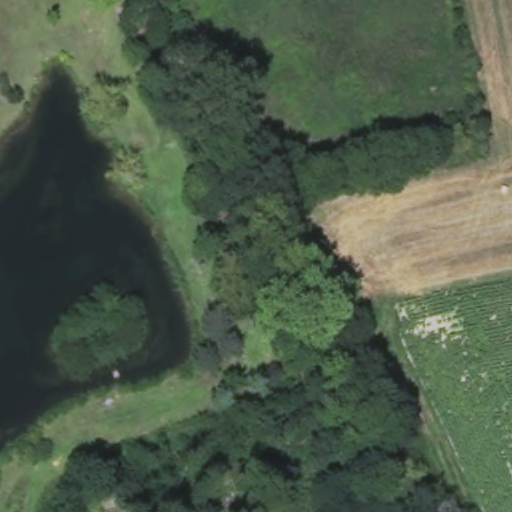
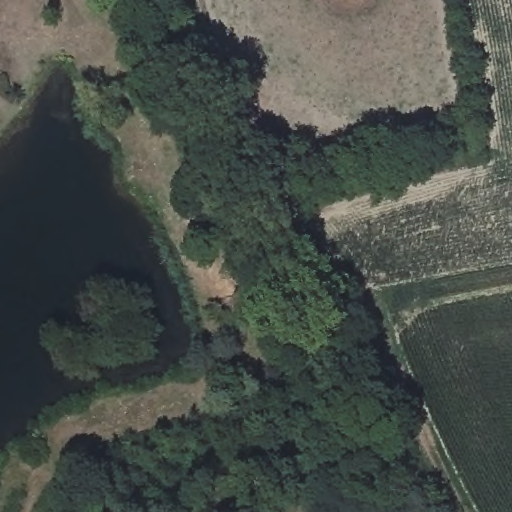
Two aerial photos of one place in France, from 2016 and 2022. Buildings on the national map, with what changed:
[]

